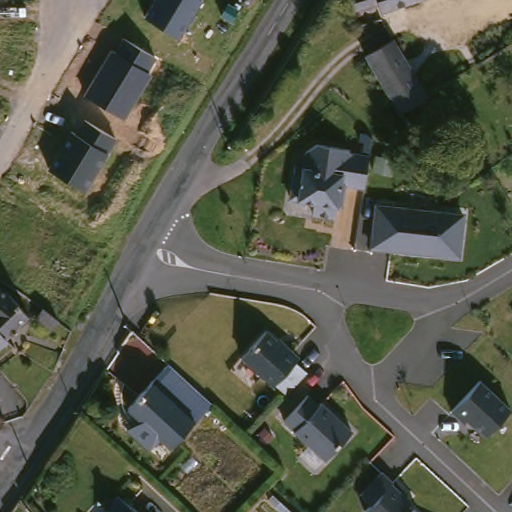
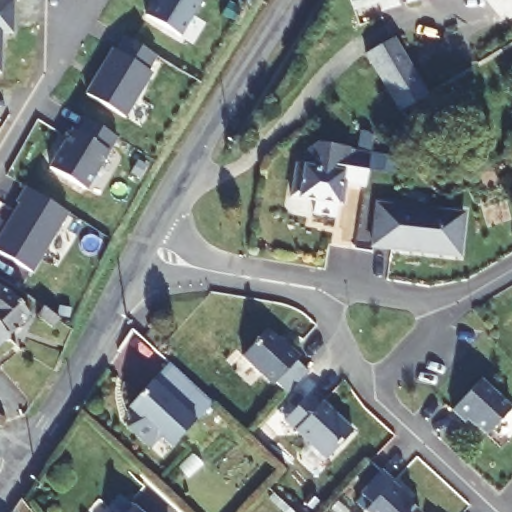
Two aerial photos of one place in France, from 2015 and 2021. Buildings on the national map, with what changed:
new [(14,34),(1,34),(1,74),(0,74),(0,0),(14,0),(14,34)]
unchanged [(146,16),(156,0),(202,0),(179,37),(146,16)]
unchanged [(377,15),(374,5),(349,14),(345,0),(425,0),(377,15)]
unchanged [(85,95),(111,49),(116,52),(124,37),(156,56),(148,72),(151,74),(125,119),(85,95)]
unchanged [(361,60),(385,44),(422,103),(397,117),(361,60)]
unchanged [(49,169),(71,130),(76,133),(85,119),(117,139),(109,152),(86,191),(49,169)]
unchanged [(369,152),(368,156),(388,160),(382,190),(362,186),(360,199),(356,197),(352,220),(330,215),(332,204),(308,200),(314,167),(322,169),(325,154),(336,146),(369,152)]
new [(0,234),(18,205),(14,204),(24,187),(69,214),(31,272),(0,254),(0,234)]
unchanged [(455,258),(369,247),(374,205),(461,216),(455,258)]
unchanged [(33,315),(9,336),(0,328),(0,289),(9,295),(33,315)]
unchanged [(53,331),(38,321),(44,312),(59,321),(53,331)]
unchanged [(279,342),(281,341),(294,353),(292,355),(304,365),(283,387),(271,376),(268,380),(237,351),(261,325),(279,342)]
unchanged [(0,328),(9,336),(0,344),(0,328)]
unchanged [(207,405),(189,425),(166,450),(123,411),(146,386),(165,366),(207,405)]
unchanged [(512,410),(512,417),(491,439),(473,422),(470,426),(457,414),(486,384),(512,410)]
unchanged [(310,397),(321,407),(324,405),(354,434),(328,462),(286,422),(310,397)]
unchanged [(388,485),(408,503),(406,505),(412,512),(361,512),(367,505),(357,496),(378,473),(389,483),(388,485)]
unchanged [(133,512),(108,512),(111,509),(108,506),(117,497),(133,512)]

